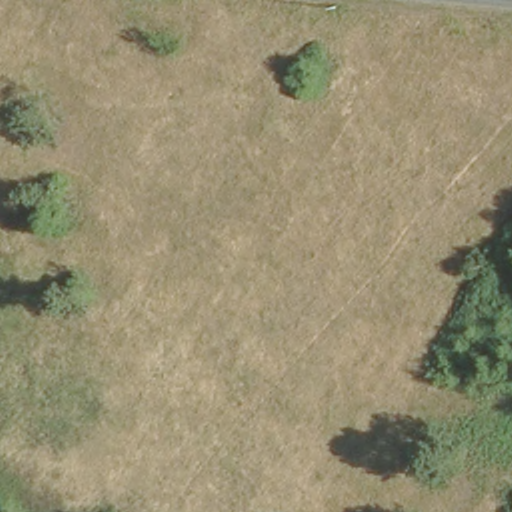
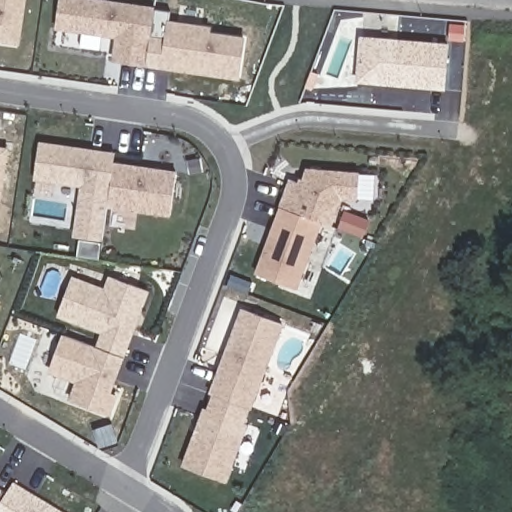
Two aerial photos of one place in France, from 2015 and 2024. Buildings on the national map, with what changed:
new [(20,45),(0,43),(0,0),(27,0),(20,45)]
new [(114,37),(54,29),(59,0),(107,0),(154,6),(151,35),(164,37),(166,19),(212,26),(211,31),(246,36),(240,80),(145,66),(112,60),(114,37)]
new [(358,36),(449,43),(446,90),(355,83),(358,36)]
demolished [(325,75),(312,97),(299,89),(312,66),(325,75)]
new [(80,186),(33,180),(38,140),(116,151),(114,162),(176,170),(170,217),(107,208),(103,241),(72,237),(80,186)]
new [(4,149),(0,178),(0,148),(4,149)]
new [(289,179),(298,182),(299,177),(303,178),(305,167),(359,171),(358,200),(342,199),(332,226),(322,222),(297,289),(254,274),(289,179)]
new [(95,345),(100,333),(56,317),(71,275),(103,287),(108,274),(149,290),(111,392),(117,394),(109,415),(69,400),(75,382),(48,373),(61,333),(95,345)]
new [(2,300),(0,303),(0,299),(2,300)]
new [(203,406),(206,407),(211,394),(208,392),(240,307),(284,323),(252,408),(250,408),(245,422),(248,424),(227,481),(181,465),(203,406)]
new [(6,495),(13,483),(60,512),(0,512),(0,491),(6,495)]

